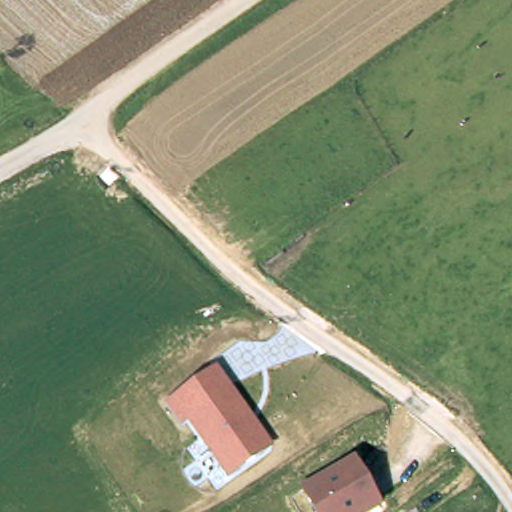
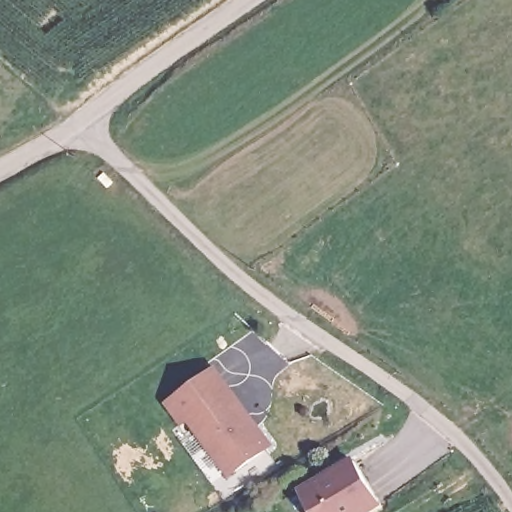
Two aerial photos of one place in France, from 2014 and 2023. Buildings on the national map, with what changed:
unchanged [(182,426),(165,402),(216,366),(273,445),(227,476),(188,422),(182,426)]
unchanged [(383,505),(370,512),(315,512),(301,487),(355,455),(383,505)]

